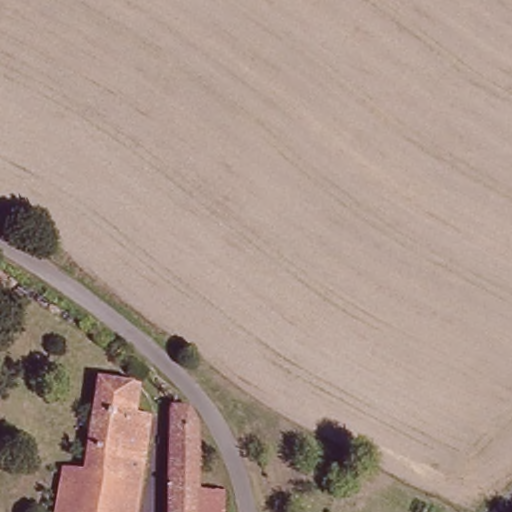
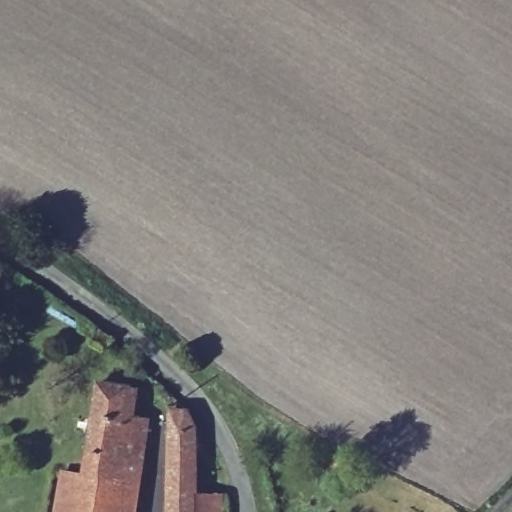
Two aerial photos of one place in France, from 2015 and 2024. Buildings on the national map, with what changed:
unchanged [(126,423),(146,426),(134,512),(57,512),(61,478),(84,481),(86,460),(96,393),(108,394),(130,398),(126,423)]
unchanged [(197,500),(197,512),(170,512),(175,417),(189,418),(197,433),(197,500)]
unchanged [(197,512),(197,500),(221,500),(221,512),(197,512)]

